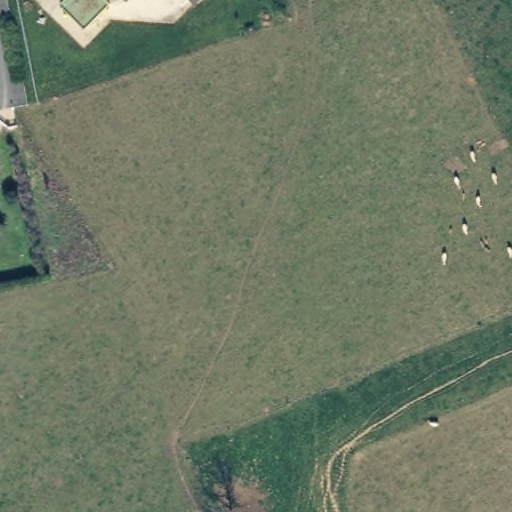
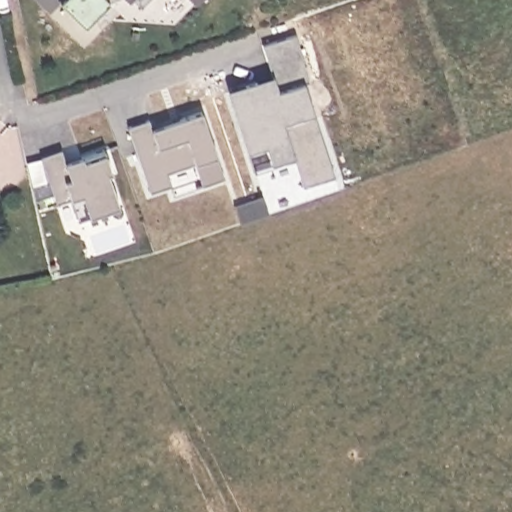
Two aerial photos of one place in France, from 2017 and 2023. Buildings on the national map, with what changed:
unchanged [(85,28),(59,5),(64,0),(103,0),(109,4),(85,28)]
unchanged [(120,0),(127,0),(123,4),(120,0)]
unchanged [(190,0),(201,0),(195,6),(190,0)]
new [(304,185),(294,156),(273,163),(253,169),(248,151),(228,91),(274,76),(264,45),(296,35),(310,80),(304,82),(314,113),(335,175),(304,185)]
new [(129,128),(150,121),(153,129),(201,113),(216,156),(224,178),(204,185),(196,163),(166,173),(171,186),(151,192),(129,128)]
new [(41,157),(61,150),(64,158),(95,148),(98,157),(105,155),(112,173),(108,175),(119,207),(90,217),(79,220),(72,199),(58,204),(41,157)]

